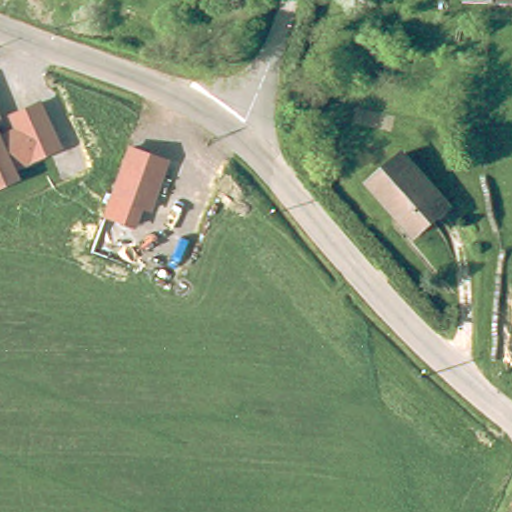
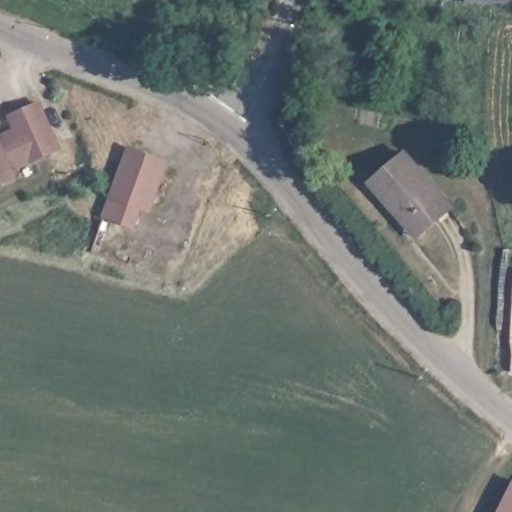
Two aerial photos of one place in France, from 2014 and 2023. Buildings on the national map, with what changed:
unchanged [(40,99),(62,149),(15,170),(19,179),(0,187),(0,133),(10,129),(5,115),(40,99)]
unchanged [(141,209),(135,228),(102,215),(126,144),(169,160),(151,212),(141,209)]
unchanged [(384,203),(370,184),(410,156),(451,214),(418,238),(413,242),(384,203)]
new [(512,484),(512,512),(498,512),(512,484)]

